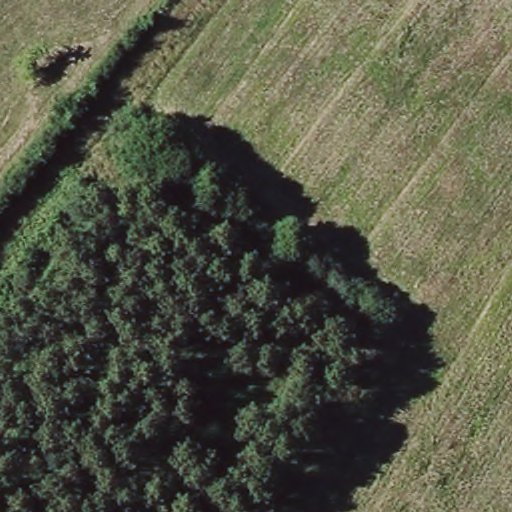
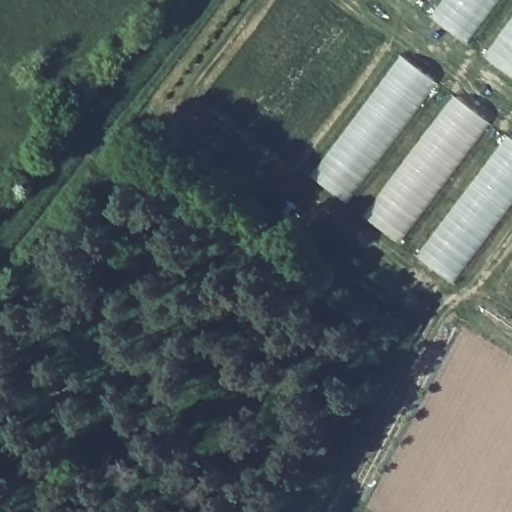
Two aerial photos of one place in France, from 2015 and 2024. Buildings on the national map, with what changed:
new [(411,2),(409,0),(413,0),(411,2)]
new [(442,0),(498,0),(465,44),(430,17),(442,0)]
new [(512,14),(512,79),(480,56),(512,14)]
new [(400,55),(435,83),(396,137),(345,202),(310,176),(400,55)]
new [(451,96),(489,124),(397,244),(361,215),(451,96)]
new [(505,135),(512,141),(512,202),(451,283),(415,255),(505,135)]

